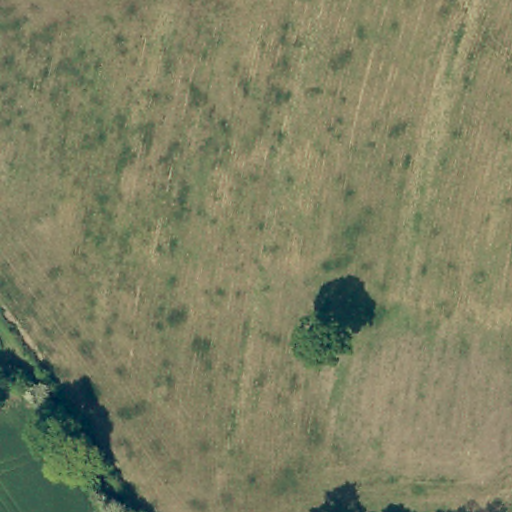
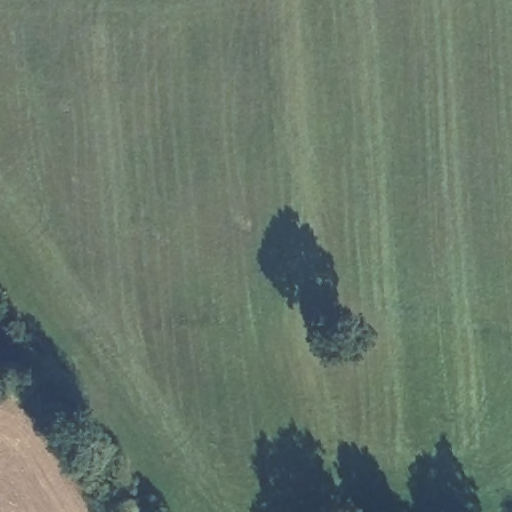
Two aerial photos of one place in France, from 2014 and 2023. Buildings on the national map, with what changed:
[]

